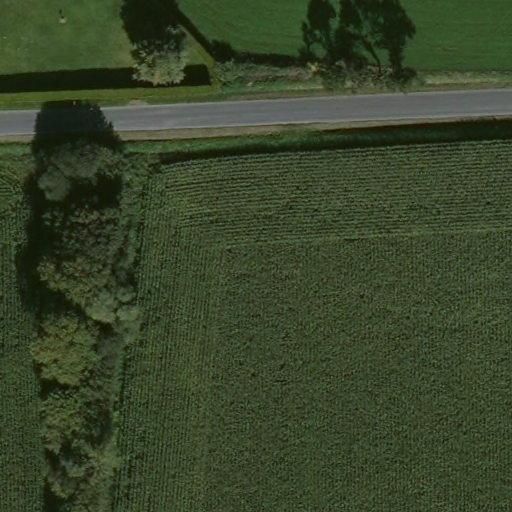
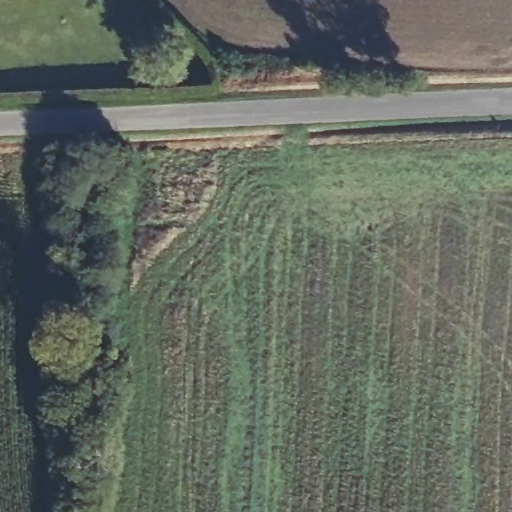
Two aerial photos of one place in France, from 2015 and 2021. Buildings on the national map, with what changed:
[]

